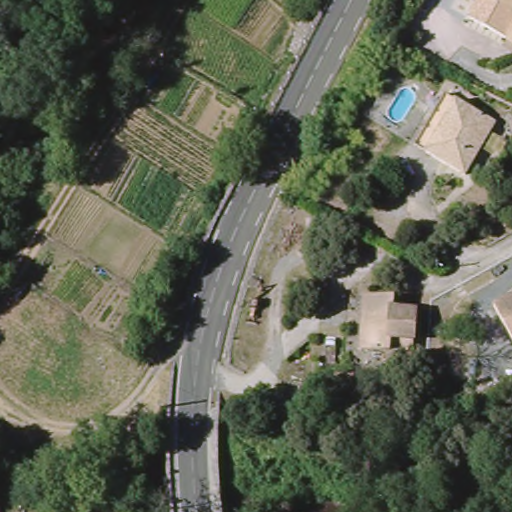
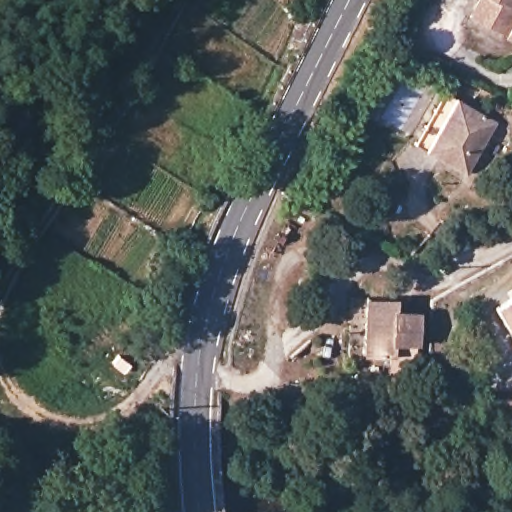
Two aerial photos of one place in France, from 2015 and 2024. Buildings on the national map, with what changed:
unchanged [(512,40),(473,21),(482,6),(485,0),(512,0),(512,40)]
unchanged [(470,172),(450,163),(438,157),(430,153),(457,101),(466,105),(482,112),(498,120),(470,172)]
unchanged [(406,368),(407,352),(379,353),(364,353),(367,301),(382,301),(410,301),(410,312),(430,312),(424,368),(406,368)]
unchanged [(512,338),(497,309),(512,301),(512,338)]

